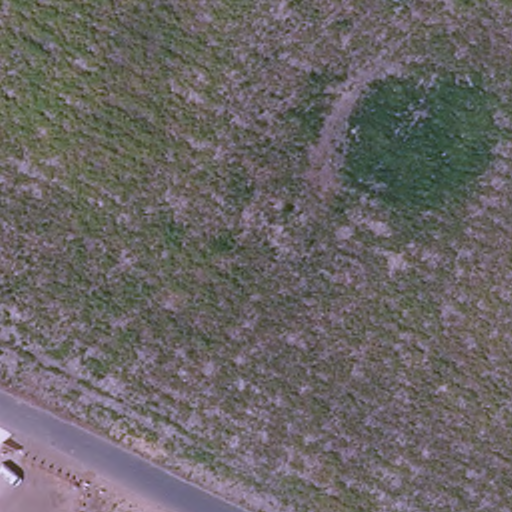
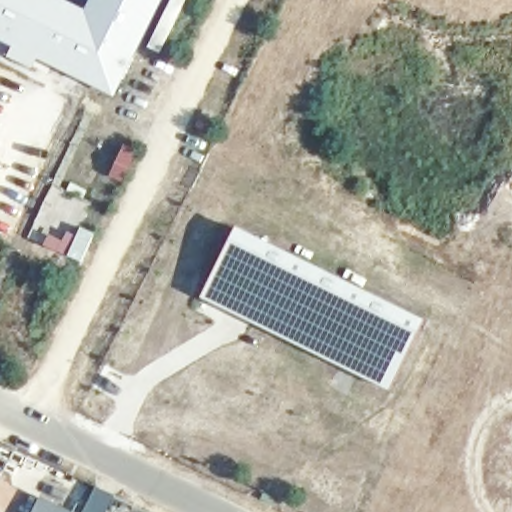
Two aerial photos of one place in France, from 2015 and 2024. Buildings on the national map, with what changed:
new [(114,98),(37,59),(31,70),(7,59),(13,47),(0,41),(0,0),(63,0),(84,10),(89,0),(162,0),(114,98)]
new [(234,226),(342,277),(423,320),(387,391),(197,298),(234,226)]
new [(49,235),(63,242),(68,233),(90,245),(80,265),(72,260),(67,270),(24,246),(29,239),(43,246),(49,235)]
new [(114,497),(107,512),(83,512),(95,488),(114,497)]
unchanged [(67,512),(33,512),(38,499),(67,512)]

